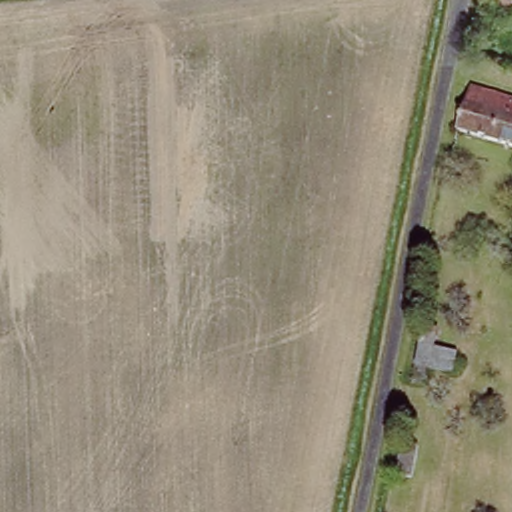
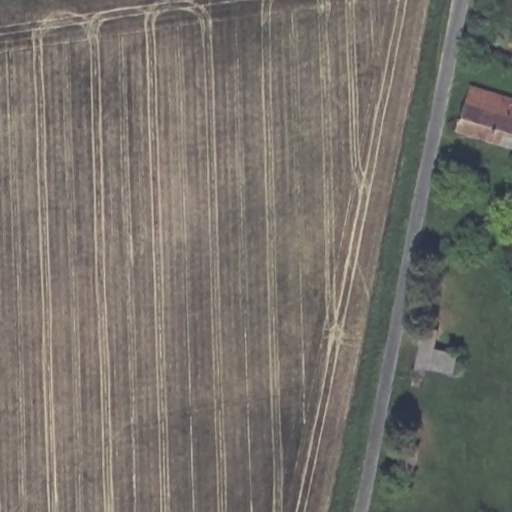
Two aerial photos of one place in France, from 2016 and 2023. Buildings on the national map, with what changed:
unchanged [(493,0),(510,0),(499,8),(493,0)]
unchanged [(454,130),(467,84),(512,97),(512,147),(454,130)]
unchanged [(453,374),(417,365),(425,327),(442,330),(438,347),(458,351),(453,374)]
unchanged [(402,473),(409,440),(424,444),(417,477),(402,473)]

